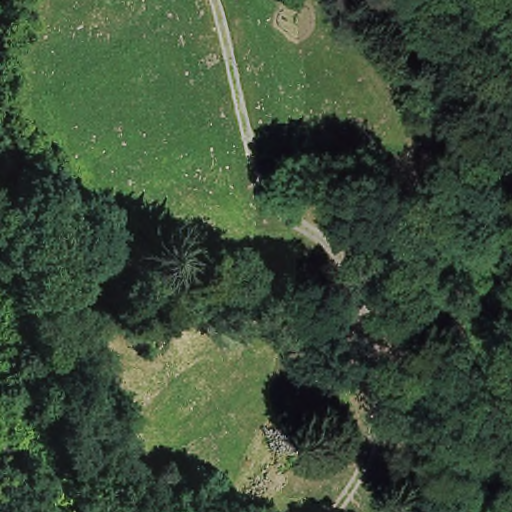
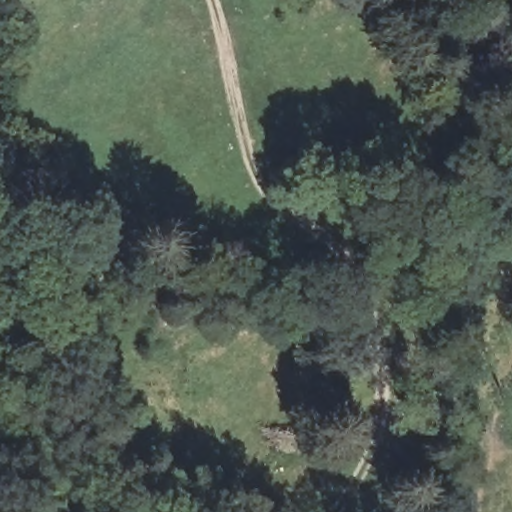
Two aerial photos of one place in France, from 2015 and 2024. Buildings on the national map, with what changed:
[]

